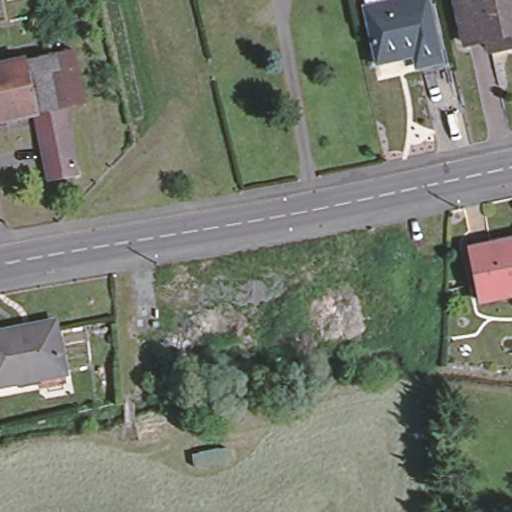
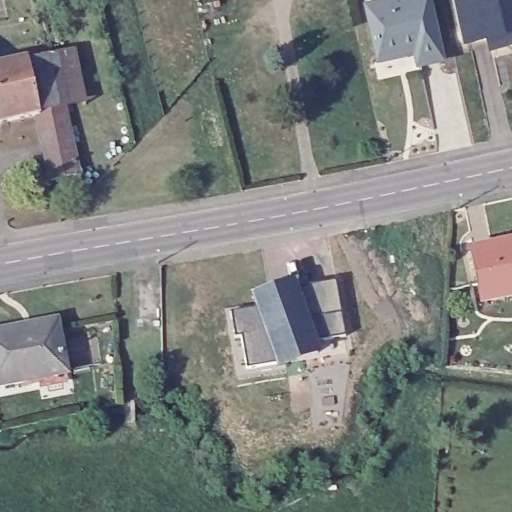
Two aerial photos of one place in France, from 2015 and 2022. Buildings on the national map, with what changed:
unchanged [(420,60),(418,49),(383,56),(369,0),(383,0),(431,0),(444,54),(420,60)]
unchanged [(498,46),(497,33),(458,36),(454,0),(512,0),(512,45),(498,46)]
unchanged [(75,49),(87,103),(63,109),(52,55),(75,49)]
unchanged [(38,114),(30,59),(52,55),(63,109),(38,114)]
unchanged [(0,66),(30,59),(38,114),(0,123),(0,66)]
unchanged [(63,109),(78,174),(52,180),(38,114),(63,109)]
unchanged [(485,299),(476,245),(512,239),(512,294),(485,299)]
new [(345,338),(275,351),(277,365),(247,370),(241,339),(234,339),(230,313),(288,304),(286,290),(335,282),(345,338)]
unchanged [(57,317),(65,369),(0,379),(0,336),(35,330),(33,320),(57,317)]

